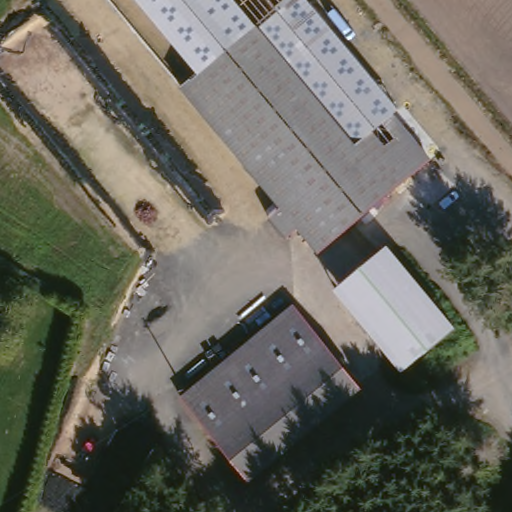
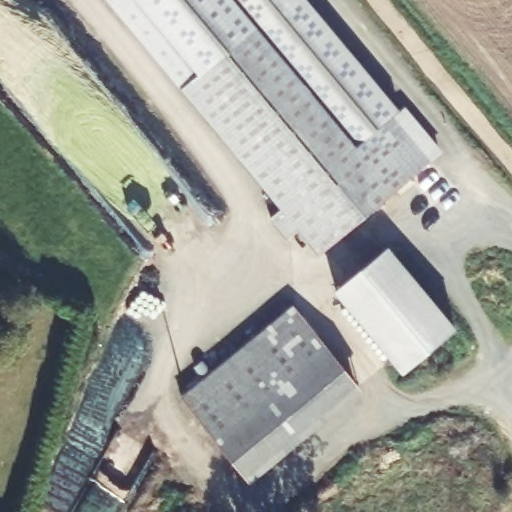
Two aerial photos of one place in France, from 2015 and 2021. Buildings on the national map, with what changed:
unchanged [(260,24),(198,73),(135,0),(307,0),(398,109),(392,117),(396,122),(359,151),(260,24)]
unchanged [(359,151),(396,122),(431,165),(317,259),(299,236),(286,246),(267,222),(280,212),(182,86),(198,73),(260,24),(359,151)]
unchanged [(457,328),(402,373),(334,290),(387,245),(457,328)]
unchanged [(184,405),(297,313),(357,392),(246,482),(184,405)]

